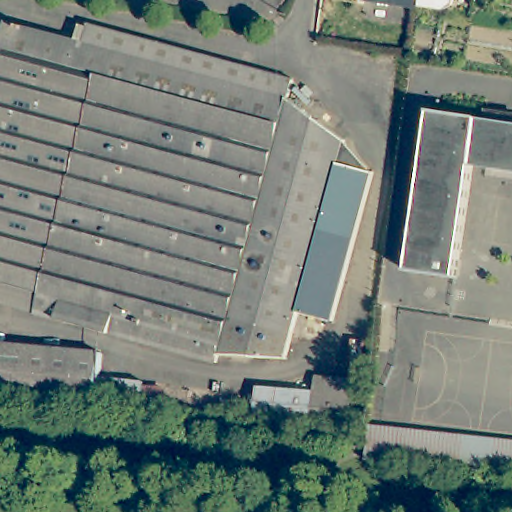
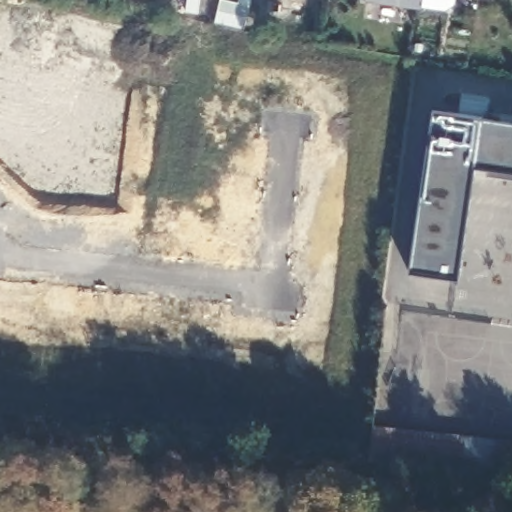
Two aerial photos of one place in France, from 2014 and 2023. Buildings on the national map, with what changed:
unchanged [(396,0),(425,0),(425,5),(396,0)]
unchanged [(432,0),(448,0),(445,2),(432,0)]
demolished [(227,351),(225,358),(0,297),(0,41),(7,43),(14,17),(93,39),(99,19),(302,74),(297,93),(311,103),(273,353),(227,351)]
demolished [(311,103),(353,135),(347,158),(306,307),(293,354),(273,353),(311,103)]
unchanged [(512,165),(481,161),(464,271),(416,264),(439,106),(512,116),(512,165)]
demolished [(109,350),(104,398),(0,389),(0,339),(109,350)]
demolished [(268,382),(324,387),(326,372),(361,375),(358,423),(263,413),(265,382),(268,382)]
new [(258,418),(260,387),(263,387),(258,418)]
unchanged [(371,443),(372,420),(512,435),(512,472),(370,455),(371,443)]

